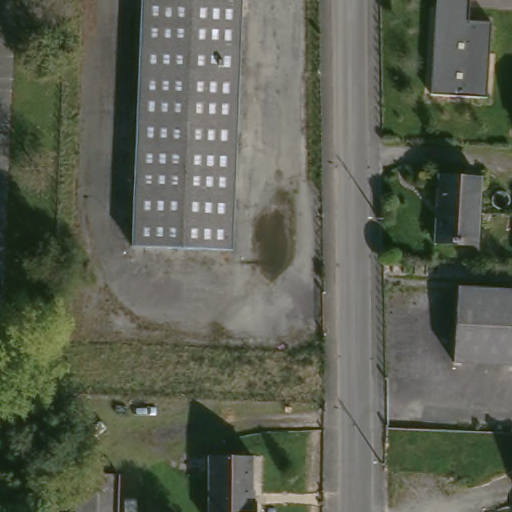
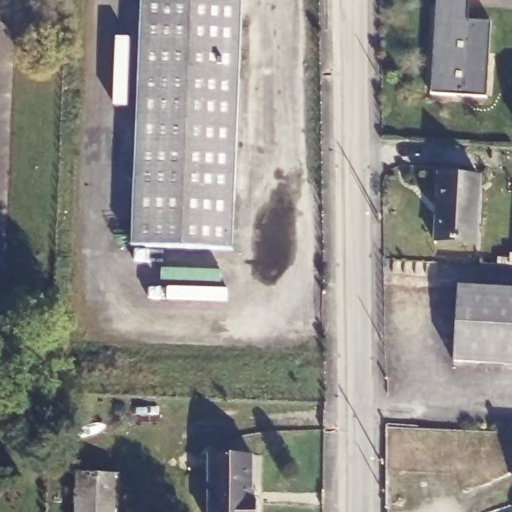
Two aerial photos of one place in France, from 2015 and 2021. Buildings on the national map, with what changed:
unchanged [(146,0),(245,0),(234,246),(134,242),(146,0)]
unchanged [(470,18),(493,20),(487,97),(434,94),(440,0),(472,0),(470,18)]
unchanged [(434,239),(437,216),(442,216),(447,172),(482,175),(475,241),(434,239)]
unchanged [(512,286),(512,364),(459,360),(466,282),(512,286)]
unchanged [(213,454),(255,454),(253,487),(253,500),(261,501),(261,512),(211,512),(212,485),(213,454)]
unchanged [(82,471),(122,472),(121,481),(120,512),(79,512),(81,480),(82,471)]

